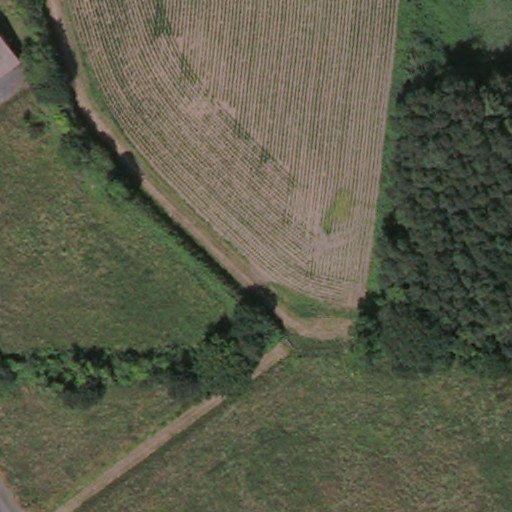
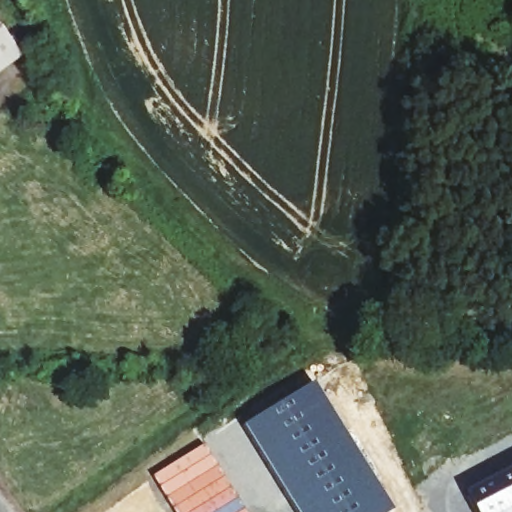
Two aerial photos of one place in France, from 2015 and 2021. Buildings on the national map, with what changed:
unchanged [(0,71),(0,25),(22,55),(0,71)]
new [(312,381),(393,510),(389,512),(296,512),(242,425),(312,381)]

